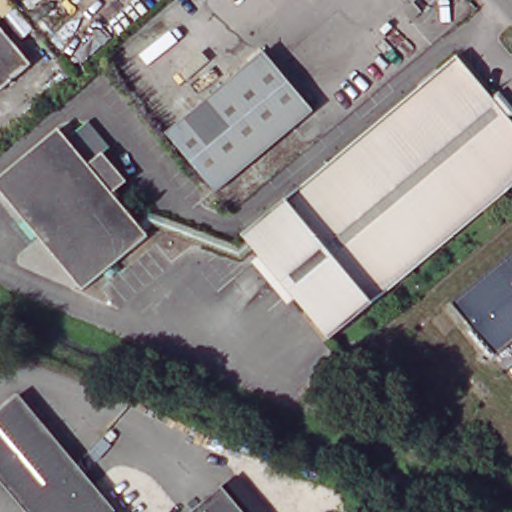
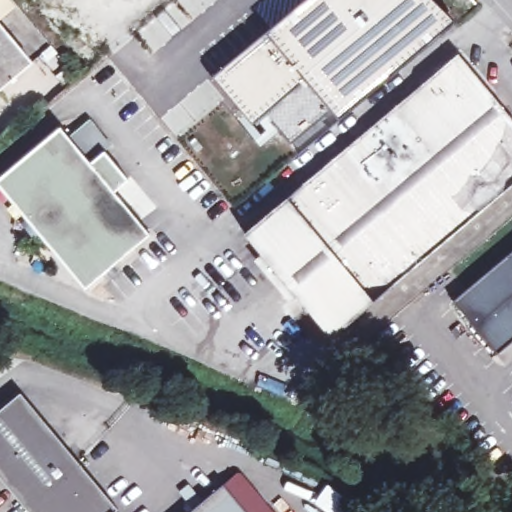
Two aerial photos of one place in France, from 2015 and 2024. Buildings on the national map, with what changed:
unchanged [(13,0),(18,6),(0,20),(0,0),(13,0)]
new [(435,0),(454,19),(381,83),(337,118),(304,77),(264,114),(278,130),(261,145),(239,121),(243,117),(210,76),(302,0),(435,0)]
unchanged [(30,63),(0,88),(0,27),(30,63)]
demolished [(218,190),(168,131),(265,50),(316,110),(218,190)]
unchanged [(268,254),(261,247),(252,236),(249,233),(464,54),(499,96),(504,90),(512,99),(512,190),(337,337),(303,297),(295,304),(259,261),(268,254)]
new [(304,77),(337,118),(296,150),(278,130),(264,114),(304,77)]
unchanged [(252,236),(261,247),(250,256),(161,222),(152,229),(156,234),(90,288),(0,181),(65,126),(73,136),(94,119),(116,145),(110,150),(134,179),(159,208),(158,209),(246,241),(252,236)]
unchanged [(458,303),(512,258),(512,346),(503,354),(458,303)]
unchanged [(455,314),(457,315),(458,317),(459,319),(459,321),(459,323),(459,325),(457,326),(456,328),(454,329),(452,329),(450,329),(448,329),(447,328),(445,326),(444,325),(443,323),(443,321),(444,319),(444,317),(446,315),(447,314),(449,313),(451,313),(453,314),(455,314)]
unchanged [(0,471),(0,415),(26,393),(123,509),(120,511),(122,512),(34,512),(0,471)]
unchanged [(229,483),(253,512),(194,512),(229,483)]

